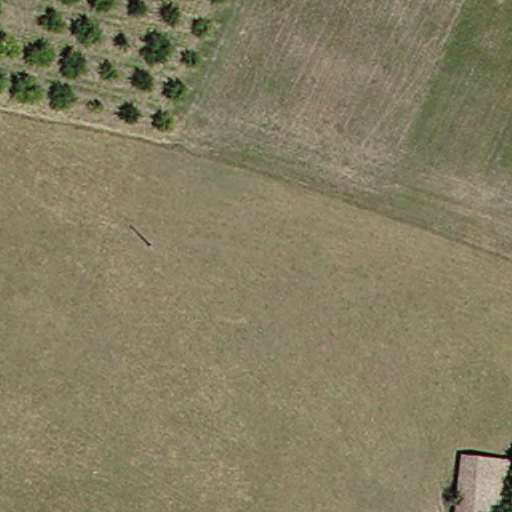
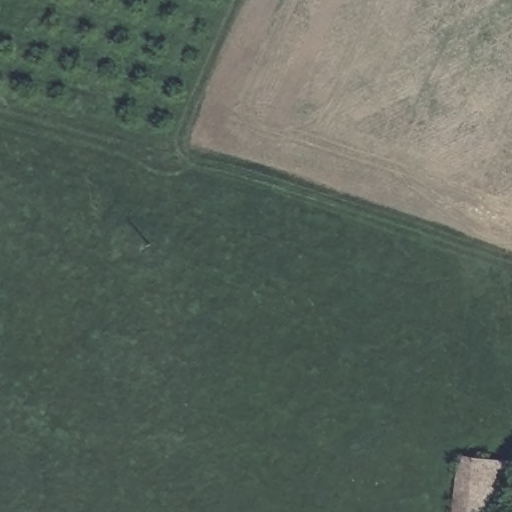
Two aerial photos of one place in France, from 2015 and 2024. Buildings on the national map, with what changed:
unchanged [(500,463),(512,463),(512,512),(498,510),(498,512),(460,512),(465,459),(500,463)]

